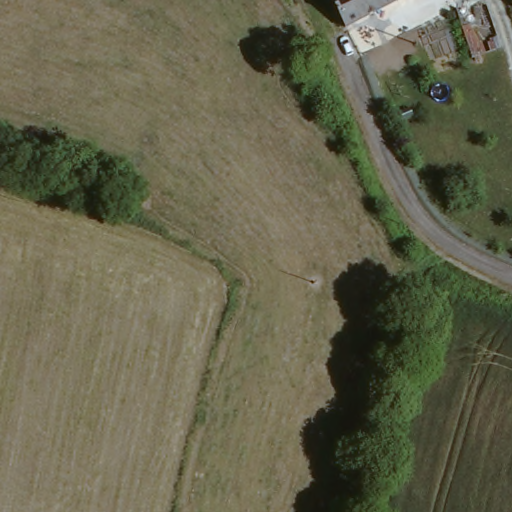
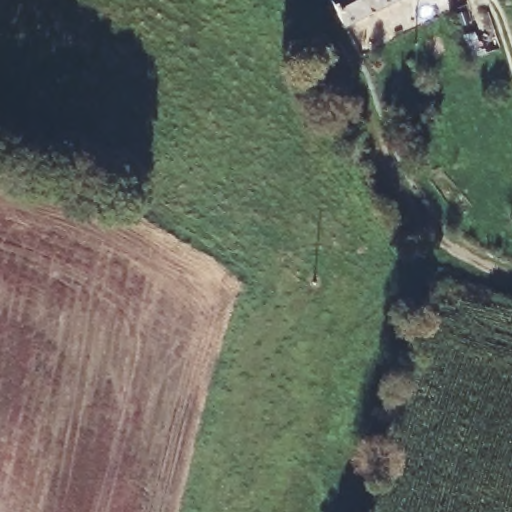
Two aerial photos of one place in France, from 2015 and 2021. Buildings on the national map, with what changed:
unchanged [(347,30),(333,0),(400,0),(347,30)]

